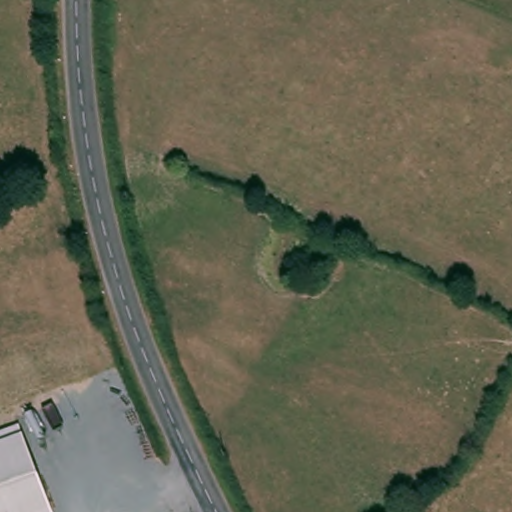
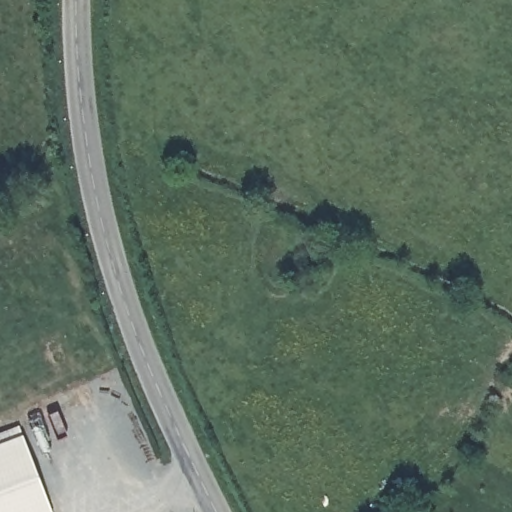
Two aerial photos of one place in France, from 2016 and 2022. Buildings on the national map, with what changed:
unchanged [(0,434),(16,428),(52,512),(0,512),(0,434)]

